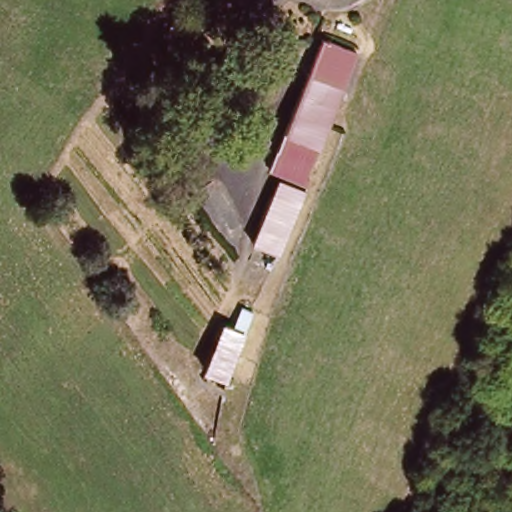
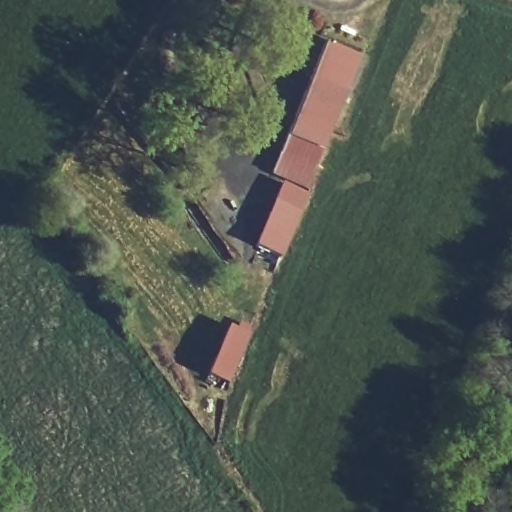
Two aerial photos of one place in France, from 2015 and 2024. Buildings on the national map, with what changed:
unchanged [(272,175),(330,45),(362,56),(305,184),(293,178),(291,185),(272,175)]
unchanged [(285,184),(310,192),(282,257),(258,245),(285,184)]
unchanged [(250,338),(230,382),(213,375),(234,330),(250,338)]

